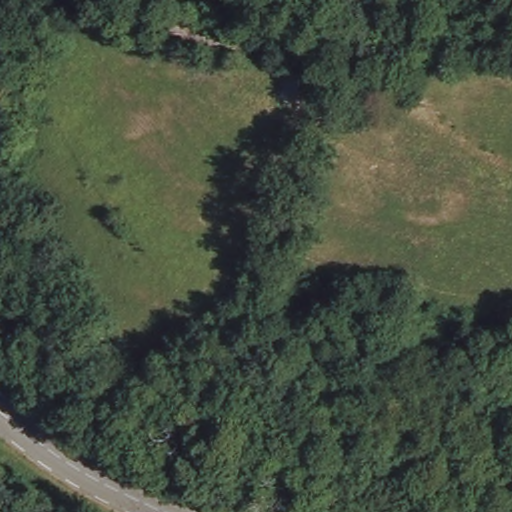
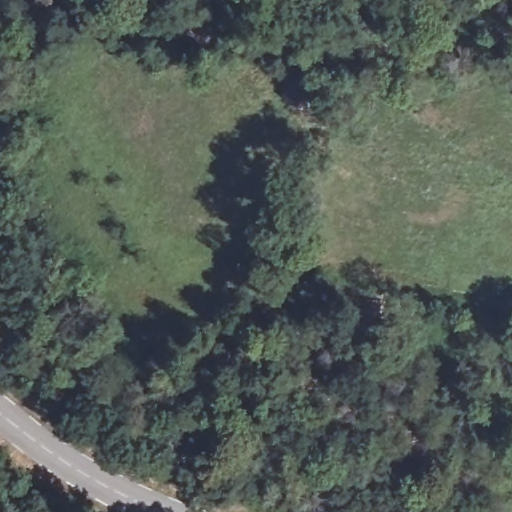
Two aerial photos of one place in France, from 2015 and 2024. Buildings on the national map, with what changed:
unchanged [(285,68),(313,72),(307,110),(282,106),(277,105),(285,68)]

